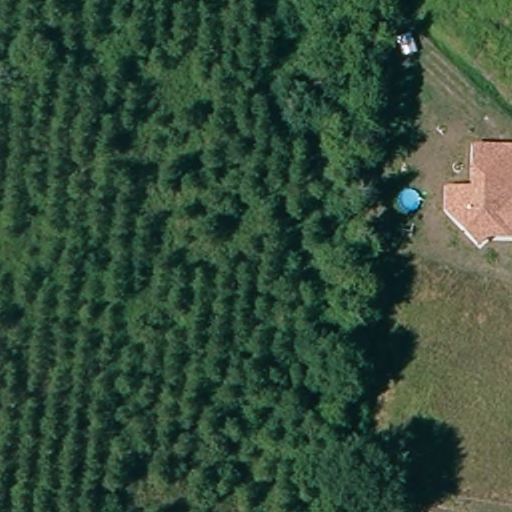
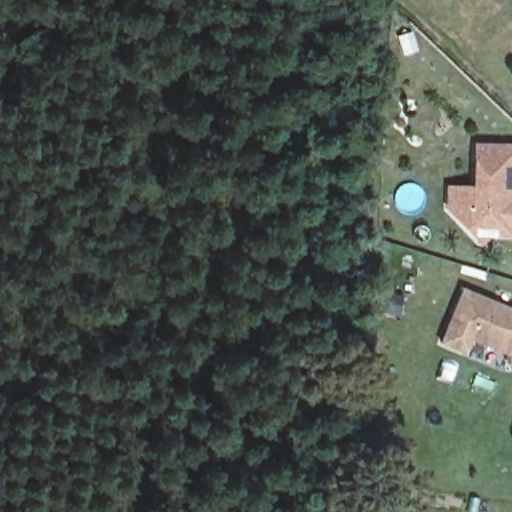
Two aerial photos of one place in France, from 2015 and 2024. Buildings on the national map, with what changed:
unchanged [(480,244),(446,212),(447,185),(471,185),(472,144),(512,144),(512,239),(486,239),(480,244)]
new [(461,288),(512,308),(512,358),(470,342),(465,356),(437,345),(461,288)]

